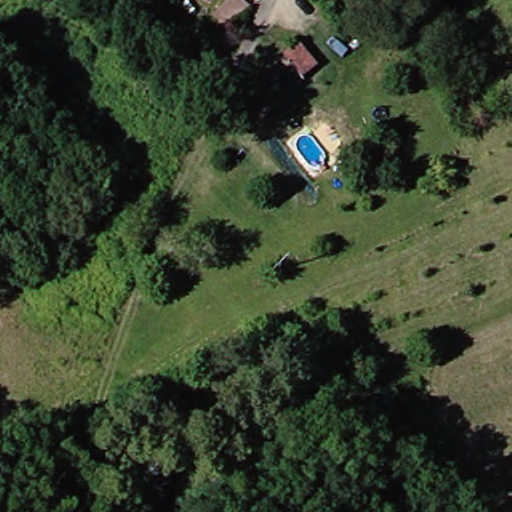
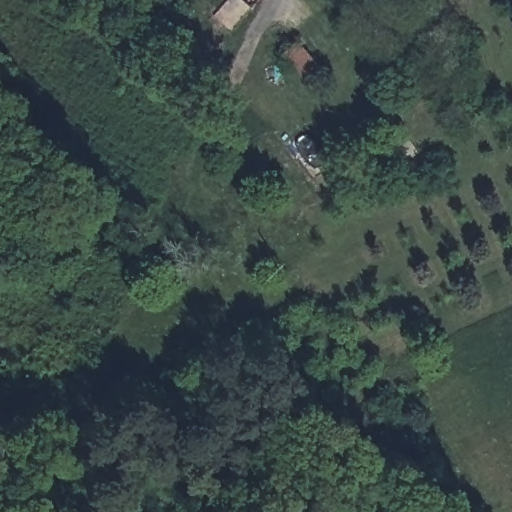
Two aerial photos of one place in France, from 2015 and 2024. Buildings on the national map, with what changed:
unchanged [(215,13),(228,0),(240,0),(249,8),(228,27),(215,13)]

